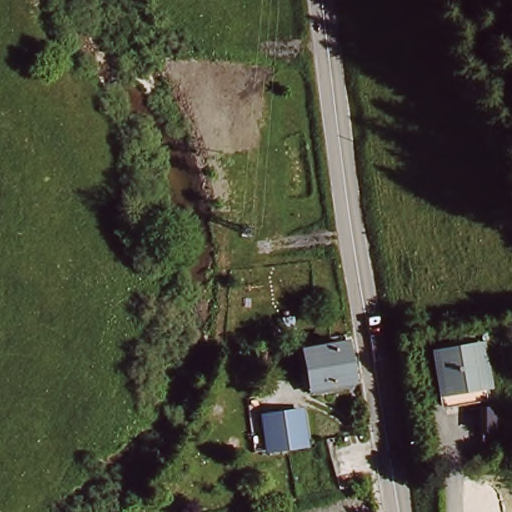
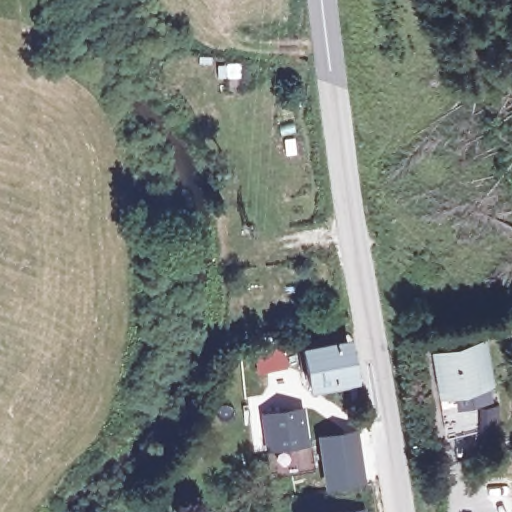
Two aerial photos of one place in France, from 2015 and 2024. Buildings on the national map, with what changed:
unchanged [(439,344),(478,337),(487,393),(445,398),(439,344)]
unchanged [(349,338),(355,387),(307,390),(298,346),(349,338)]
unchanged [(265,450),(259,411),(304,407),(311,445),(265,450)]
new [(358,428),(367,486),(325,494),(316,435),(358,428)]
new [(367,507),(367,512),(335,512),(367,507)]

